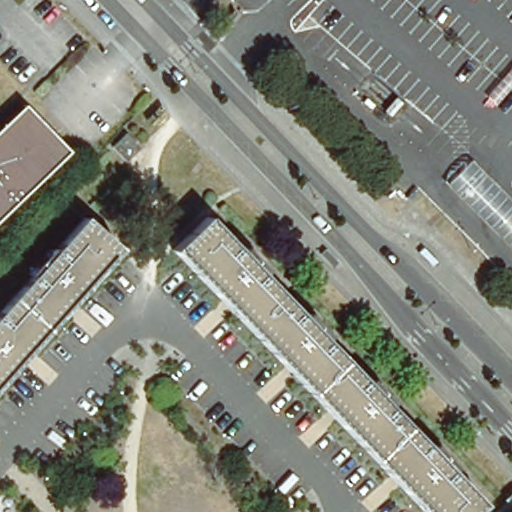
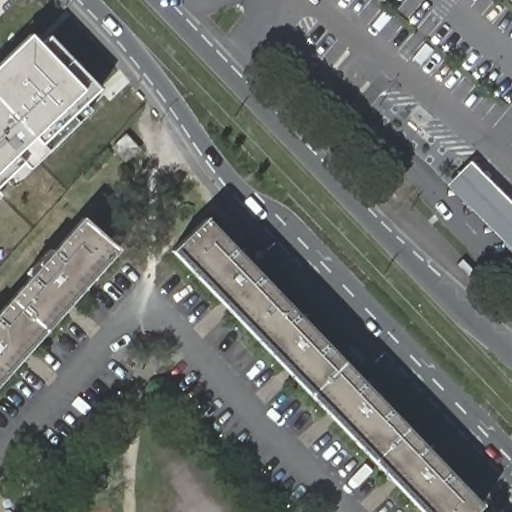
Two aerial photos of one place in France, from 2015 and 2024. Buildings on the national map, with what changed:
new [(48,36),(99,89),(84,104),(90,111),(30,169),(24,163),(0,186),(0,62),(29,34),(39,44),(48,36)]
demolished [(33,113),(76,156),(0,233),(0,146),(33,113)]
unchanged [(105,143),(117,128),(137,145),(123,159),(105,143)]
unchanged [(512,201),(512,259),(441,187),(470,159),(512,201)]
unchanged [(485,507),(479,512),(424,512),(174,252),(208,218),(485,507)]
unchanged [(116,250),(94,275),(99,279),(0,390),(0,313),(84,220),(116,250)]

